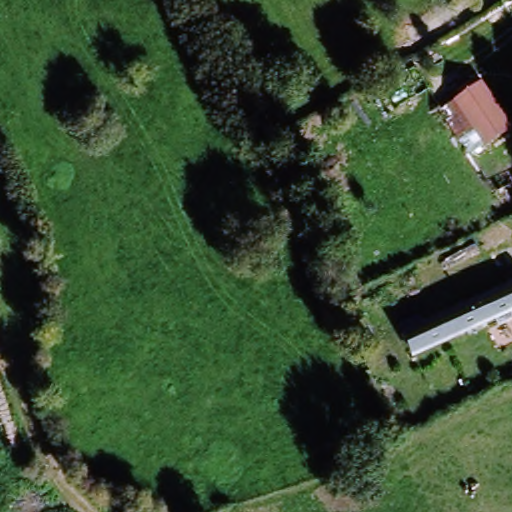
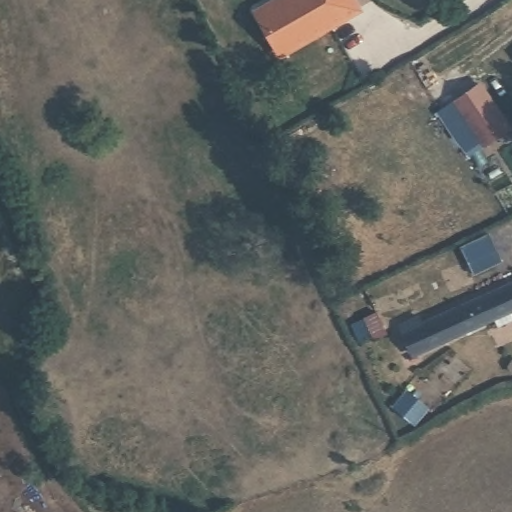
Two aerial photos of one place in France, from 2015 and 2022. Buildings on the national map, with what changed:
new [(279,59),(252,11),(272,0),(358,0),(364,10),(279,59)]
unchanged [(457,140),(441,114),(480,90),(494,113),(507,134),(468,158),(457,140)]
unchanged [(416,325),(512,283),(512,309),(403,356),(390,325),(412,315),(416,325)]
unchanged [(348,318),(362,311),(372,335),(357,342),(348,318)]

